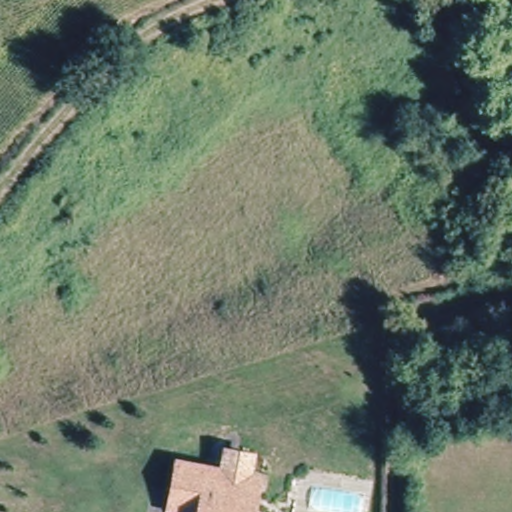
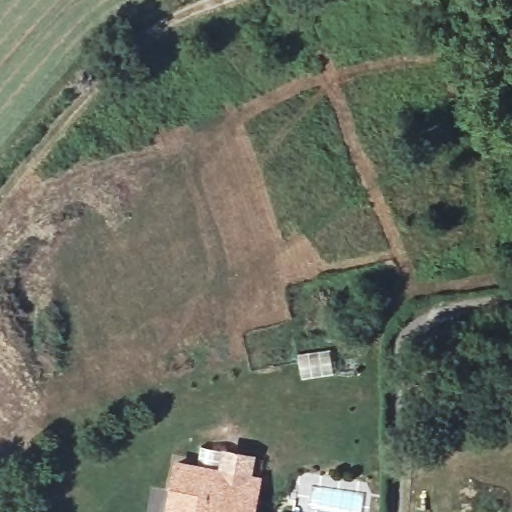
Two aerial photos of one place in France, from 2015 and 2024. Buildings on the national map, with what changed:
unchanged [(267,481),(264,498),(262,512),(184,512),(189,487),(192,468),(250,478),(267,481)]

